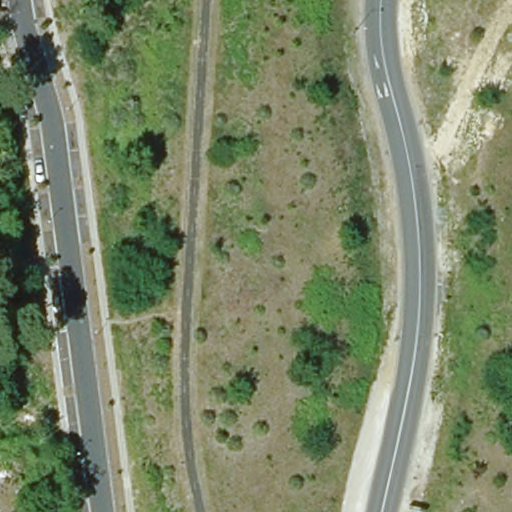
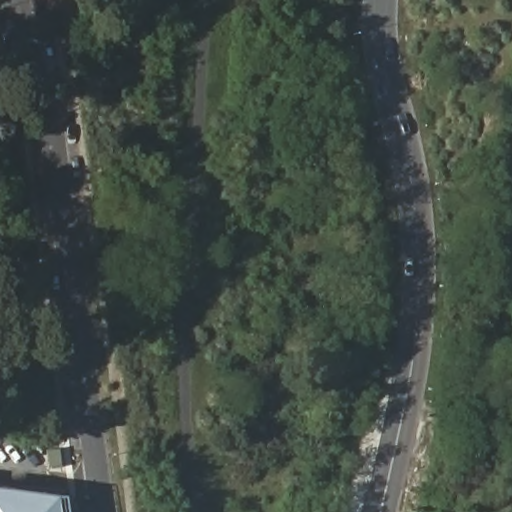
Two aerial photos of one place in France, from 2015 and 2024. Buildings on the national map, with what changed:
new [(0,512),(0,487),(70,500),(72,512),(0,512)]

